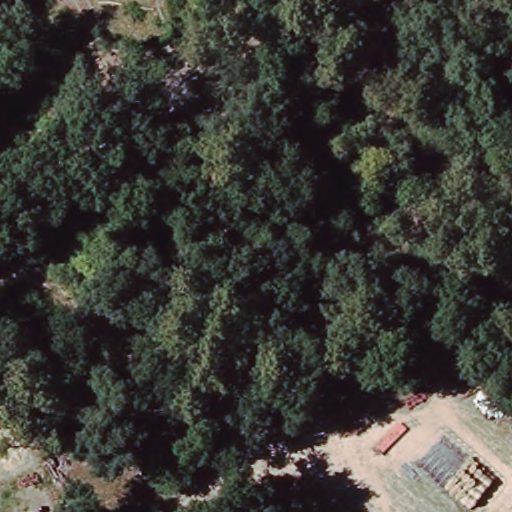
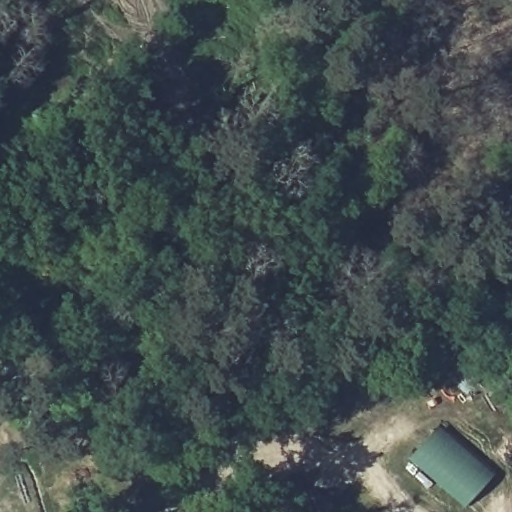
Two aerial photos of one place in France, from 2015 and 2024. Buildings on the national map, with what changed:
new [(439,427),(495,475),(465,509),(409,460),(439,427)]

